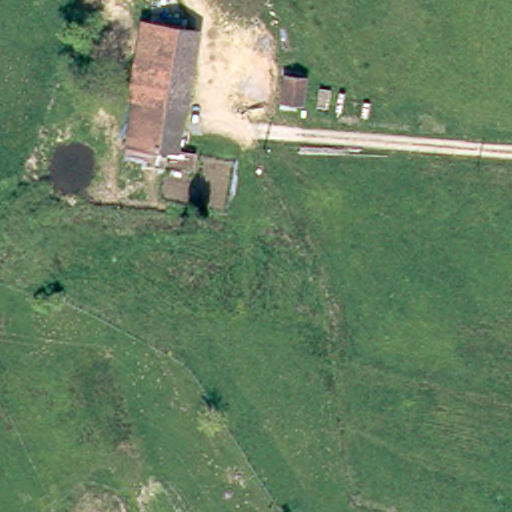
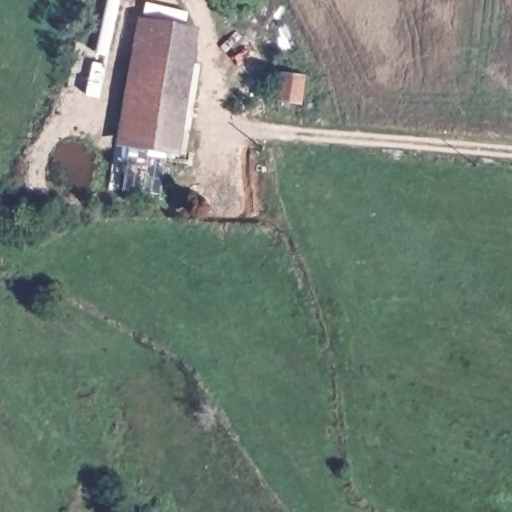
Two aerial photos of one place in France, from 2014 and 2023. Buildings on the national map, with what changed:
unchanged [(198,157),(155,151),(157,137),(132,133),(147,46),(150,27),(195,34),(192,54),(195,54),(181,141),(200,144),(198,157)]
unchanged [(308,68),(305,104),(272,106),(272,68),(308,68)]

